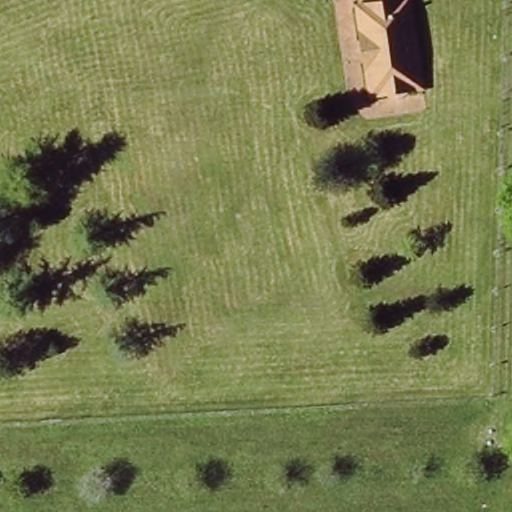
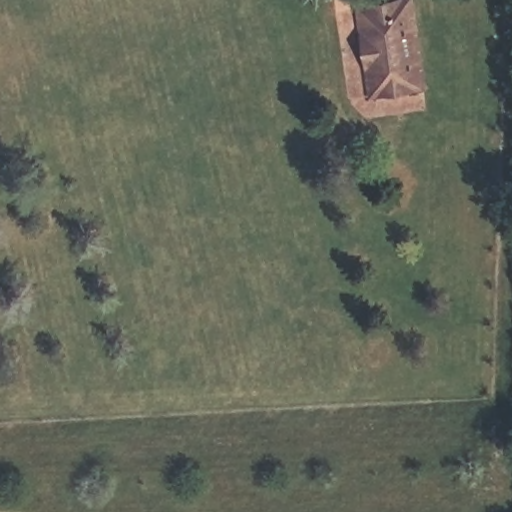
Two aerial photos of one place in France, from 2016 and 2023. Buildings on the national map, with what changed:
unchanged [(415,83),(365,87),(354,0),(404,0),(415,83)]

